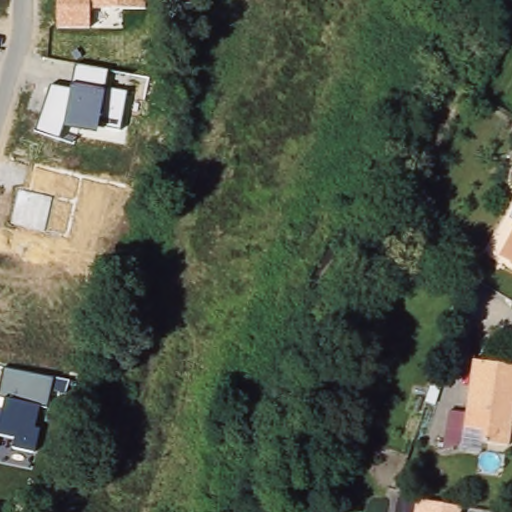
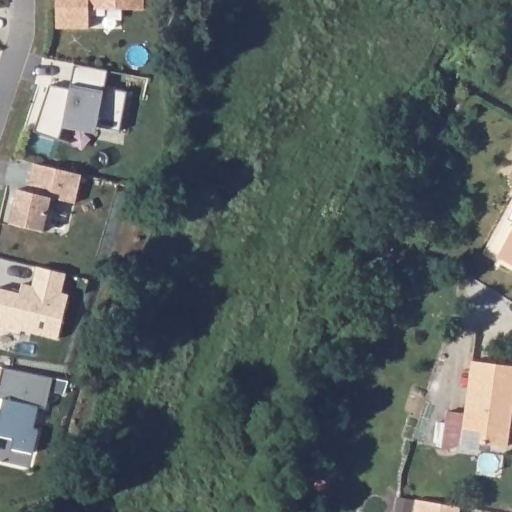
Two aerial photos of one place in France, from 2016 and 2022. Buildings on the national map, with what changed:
unchanged [(145,0),(145,9),(92,9),(92,27),(58,28),(58,0),(145,0)]
unchanged [(51,85),(70,91),(72,85),(76,65),(109,71),(106,89),(127,93),(122,131),(99,126),(97,133),(66,126),(60,139),(35,131),(51,85)]
unchanged [(407,158),(400,158),(400,152),(406,152),(407,158)]
new [(20,194),(29,196),(36,168),(84,179),(77,207),(54,202),(45,236),(11,227),(20,194)]
unchanged [(498,257),(486,250),(512,201),(512,232),(498,257)]
unchanged [(498,257),(512,232),(512,264),(498,257)]
new [(24,288),(34,291),(39,271),(67,278),(62,297),(70,300),(60,343),(22,335),(22,338),(0,333),(0,293),(22,298),(24,288)]
unchanged [(505,401),(503,410),(507,415),(503,447),(477,443),(478,431),(459,428),(457,446),(438,451),(443,411),(461,413),(468,361),(512,367),(512,402),(505,401)]
unchanged [(52,380),(69,382),(66,396),(51,392),(48,407),(41,406),(36,429),(40,431),(35,454),(13,448),(15,439),(0,436),(0,381),(2,368),(52,380)]
unchanged [(417,500),(421,500),(462,507),(461,512),(416,512),(417,500)]

